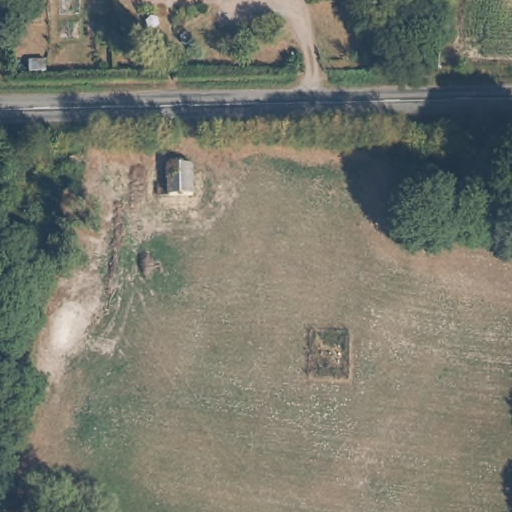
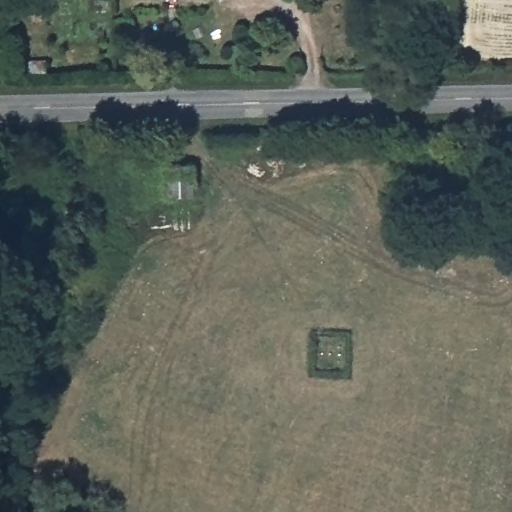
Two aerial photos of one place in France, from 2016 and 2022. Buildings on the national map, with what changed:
unchanged [(235,39),(236,19),(265,19),(266,40),(235,39)]
unchanged [(161,198),(162,168),(192,169),(193,198),(161,198)]

